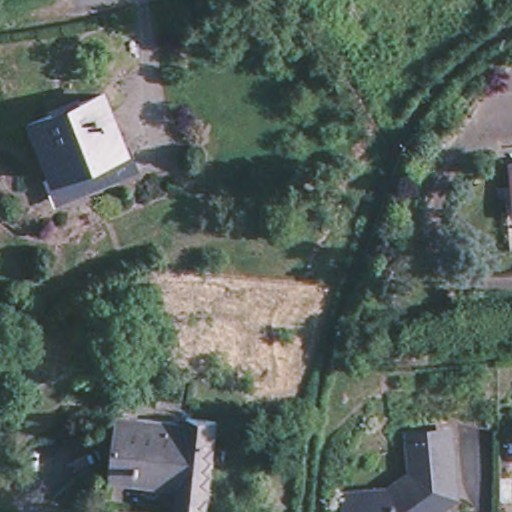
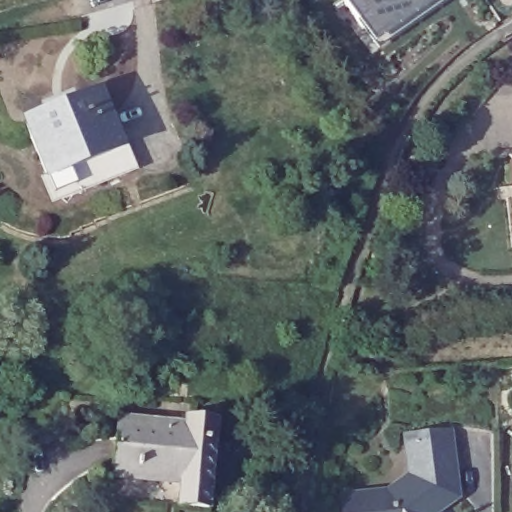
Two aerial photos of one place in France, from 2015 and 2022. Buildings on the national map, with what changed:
new [(362,29),(361,30),(342,0),(436,0),(396,27),(372,45),(362,29)]
unchanged [(25,115),(49,106),(51,110),(77,100),(76,96),(100,86),(120,139),(46,169),(25,115)]
unchanged [(120,139),(129,161),(54,189),(46,169),(120,139)]
unchanged [(185,416),(215,420),(206,508),(177,506),(179,485),(112,477),(118,416),(185,423),(185,416)]
unchanged [(452,485),(433,497),(440,507),(444,505),(449,512),(347,512),(345,492),(389,487),(411,468),(408,434),(446,431),(452,485)]

